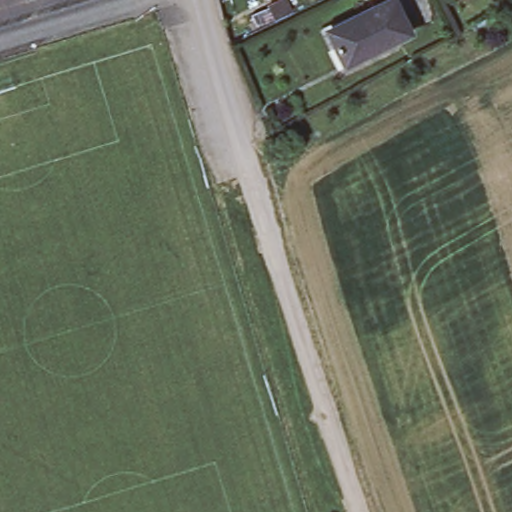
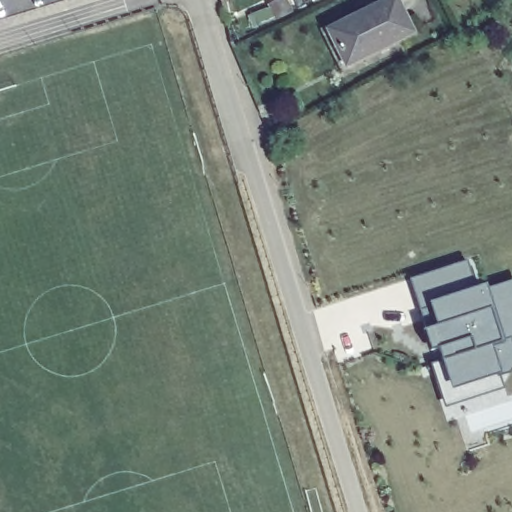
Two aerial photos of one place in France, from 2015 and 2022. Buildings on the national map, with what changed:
unchanged [(330,31),(387,0),(395,0),(412,31),(348,66),(330,31)]
new [(498,375),(502,388),(444,408),(430,365),(440,362),(435,351),(429,353),(422,331),(425,330),(408,279),(465,261),(473,288),(483,286),(485,290),(512,281),(512,365),(510,372),(498,375)]

